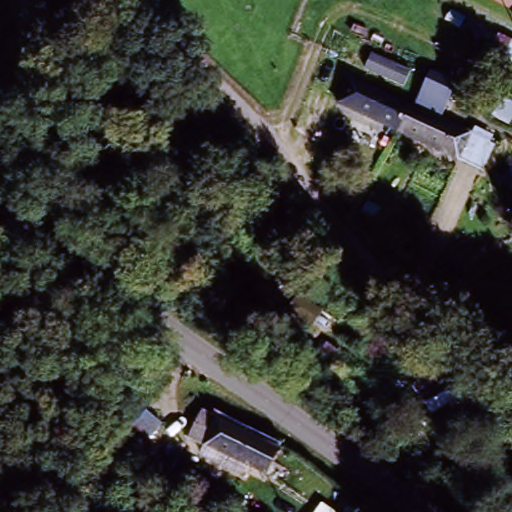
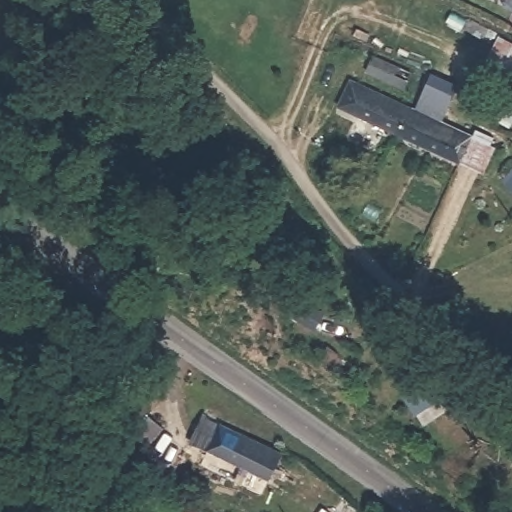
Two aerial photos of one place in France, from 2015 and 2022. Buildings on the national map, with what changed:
unchanged [(467,174),(389,134),(402,105),(407,108),(412,101),(425,71),(451,84),(437,113),(434,121),(482,144),(467,174)]
unchanged [(338,109),(352,81),(402,105),(389,134),(338,109)]
unchanged [(502,157),(512,161),(512,183),(494,175),(502,157)]
unchanged [(472,400),(429,423),(419,401),(462,378),(472,400)]
unchanged [(267,479),(195,436),(207,416),(280,459),(267,479)]

